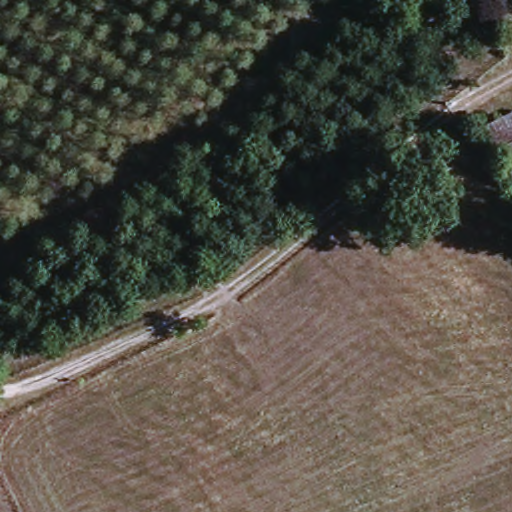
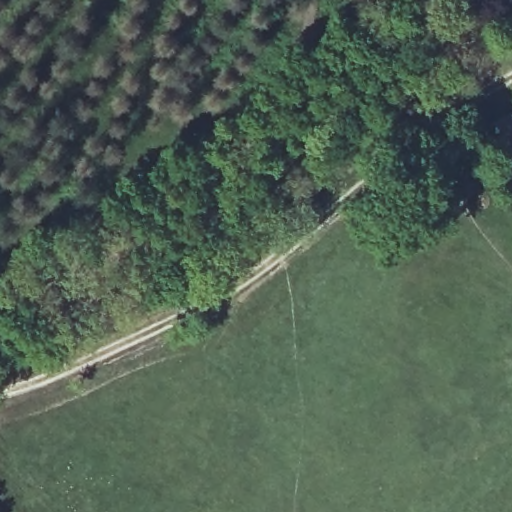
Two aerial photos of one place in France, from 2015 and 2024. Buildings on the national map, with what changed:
unchanged [(504,173),(483,128),(512,112),(512,170),(504,173)]

